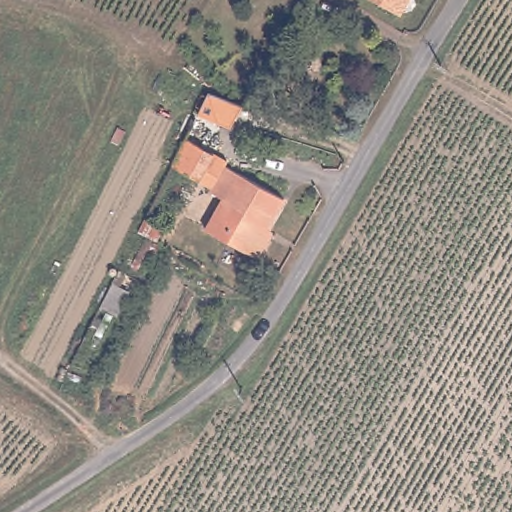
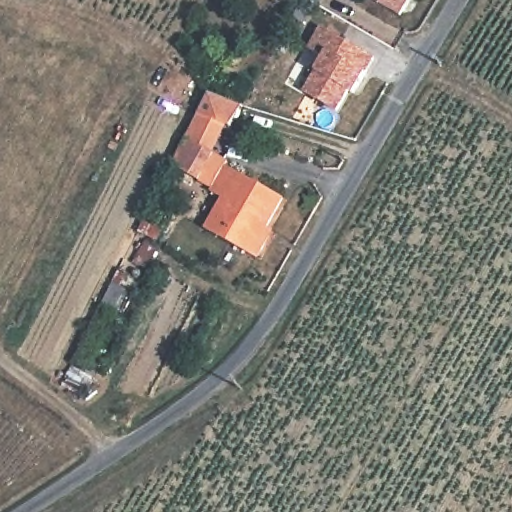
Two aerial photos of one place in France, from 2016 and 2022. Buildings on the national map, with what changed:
new [(407,0),(397,16),(370,0),(407,0)]
demolished [(401,0),(415,0),(411,6),(401,0)]
new [(321,57),(306,49),(319,27),(373,59),(355,89),(350,85),(334,112),(301,92),(321,57)]
unchanged [(204,225),(222,194),(209,186),(211,182),(200,175),(198,177),(172,161),(171,161),(184,135),(185,134),(205,145),(227,157),(225,161),(285,193),(267,224),(274,227),(258,254),(204,225)]
unchanged [(138,232),(146,216),(165,226),(157,242),(138,232)]
unchanged [(133,260),(144,238),(160,246),(148,268),(133,260)]
unchanged [(101,307),(113,283),(120,270),(127,274),(120,287),(132,293),(119,317),(115,315),(87,370),(73,362),(101,307)]

